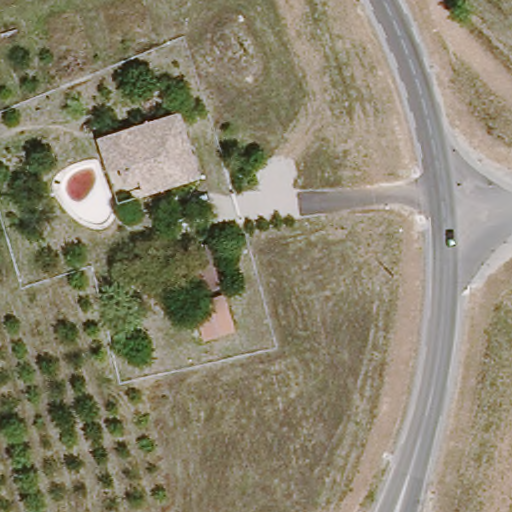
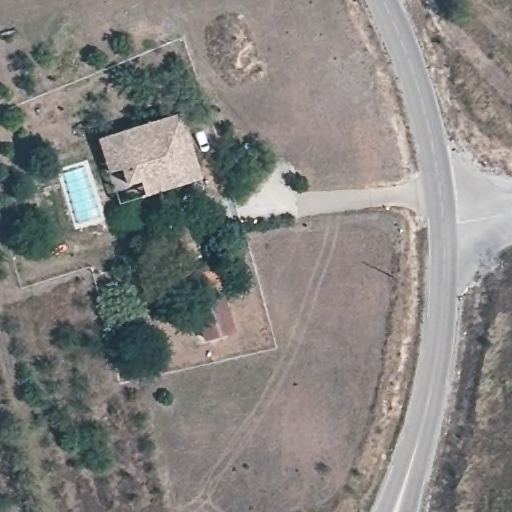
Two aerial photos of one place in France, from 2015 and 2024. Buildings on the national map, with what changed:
unchanged [(161,186),(158,182),(144,188),(136,175),(124,181),(108,151),(133,137),(180,112),(214,170),(184,187),(168,197),(161,186)]

